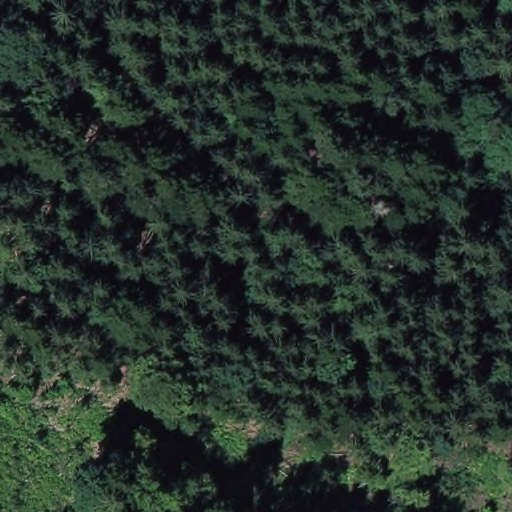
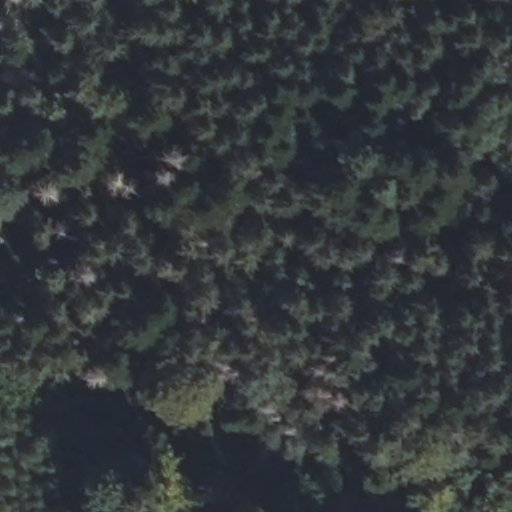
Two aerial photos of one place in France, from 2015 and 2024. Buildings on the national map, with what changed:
[]

